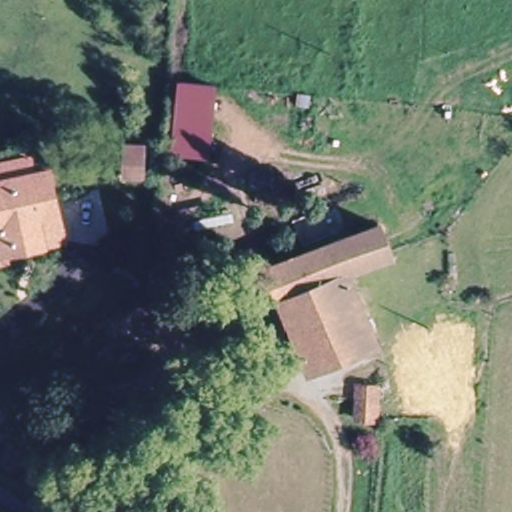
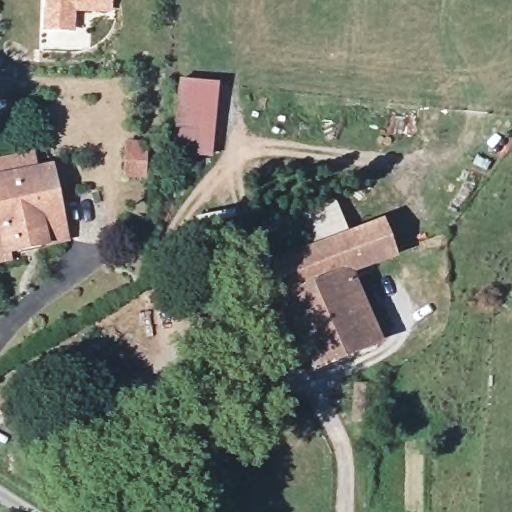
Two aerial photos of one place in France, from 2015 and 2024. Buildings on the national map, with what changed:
new [(110,15),(73,14),(73,32),(45,31),(45,0),(110,0),(110,15)]
unchanged [(217,86),(210,157),(173,153),(181,82),(217,86)]
unchanged [(126,176),(127,146),(145,147),(144,177),(126,176)]
unchanged [(2,247),(4,254),(0,255),(0,158),(4,157),(26,152),(29,169),(45,165),(60,235),(30,241),(18,243),(2,247)]
unchanged [(394,257),(347,273),(377,342),(341,357),(309,368),(288,318),(267,268),(280,263),(276,251),(289,245),(294,258),(381,225),(394,257)]
unchanged [(357,420),(359,387),(379,387),(377,421),(357,420)]

